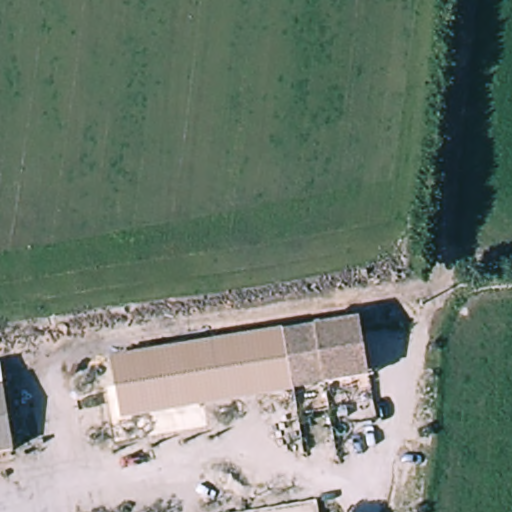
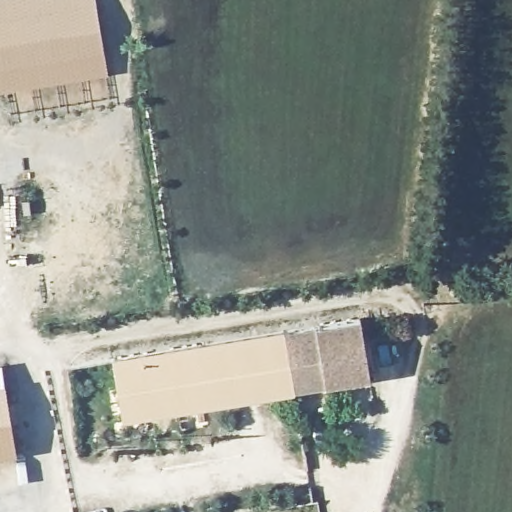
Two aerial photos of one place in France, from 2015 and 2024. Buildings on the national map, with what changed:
new [(0,92),(0,0),(95,0),(108,75),(0,92)]
unchanged [(315,330),(361,321),(370,381),(323,391),(315,330)]
unchanged [(125,432),(114,367),(315,330),(323,391),(125,432)]
unchanged [(16,455),(0,457),(0,370),(3,370),(16,455)]

